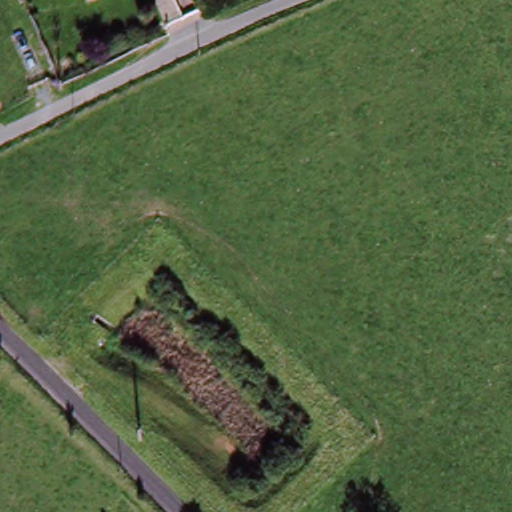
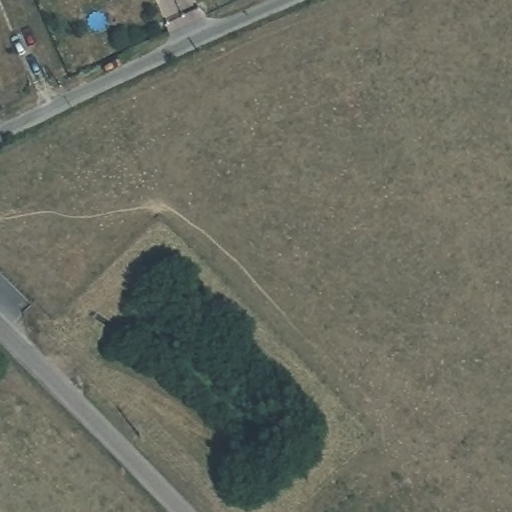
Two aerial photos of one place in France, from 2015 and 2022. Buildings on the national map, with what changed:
[]

